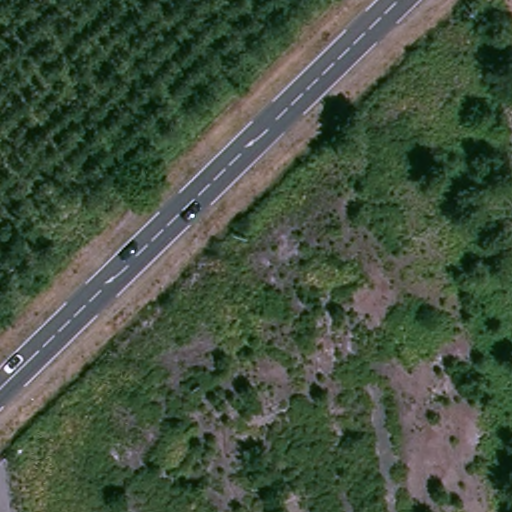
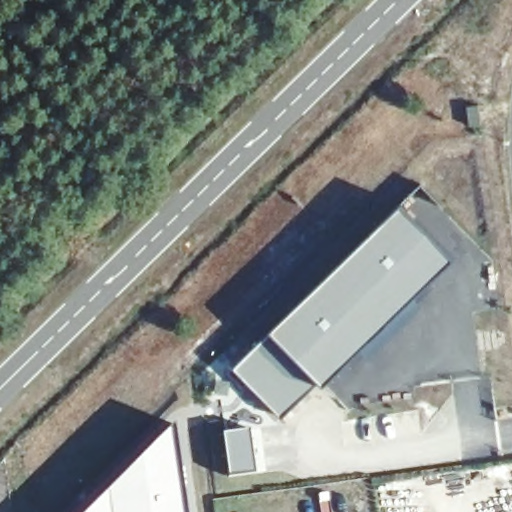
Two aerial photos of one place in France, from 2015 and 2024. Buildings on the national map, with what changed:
new [(233,368),(271,329),(401,204),(451,257),(323,383),(282,418),(233,368)]
new [(155,442),(173,426),(175,448),(185,512),(85,512),(155,442)]
new [(250,429),(257,473),(230,476),(224,433),(250,429)]

